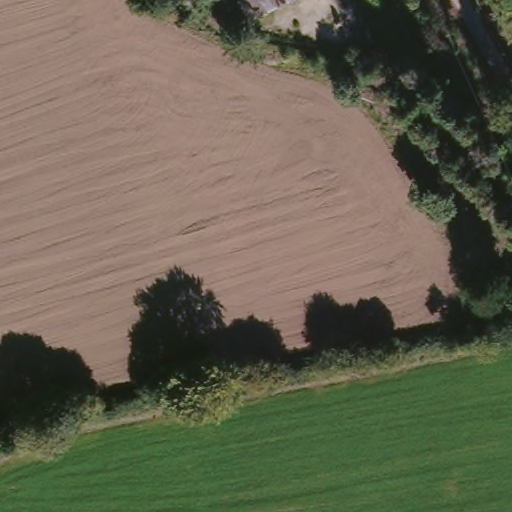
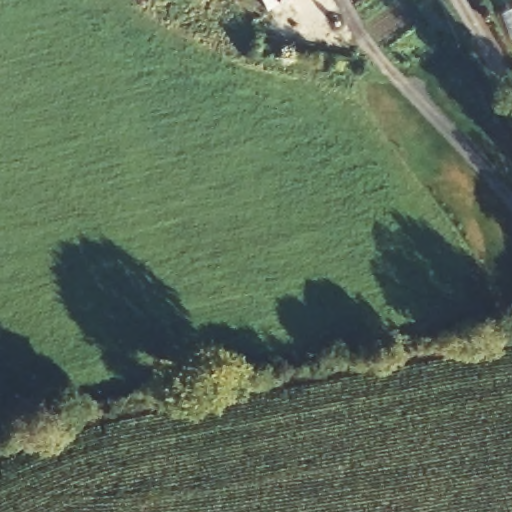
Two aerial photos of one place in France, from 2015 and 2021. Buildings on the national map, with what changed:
unchanged [(229,0),(294,0),(242,26),(229,0)]

